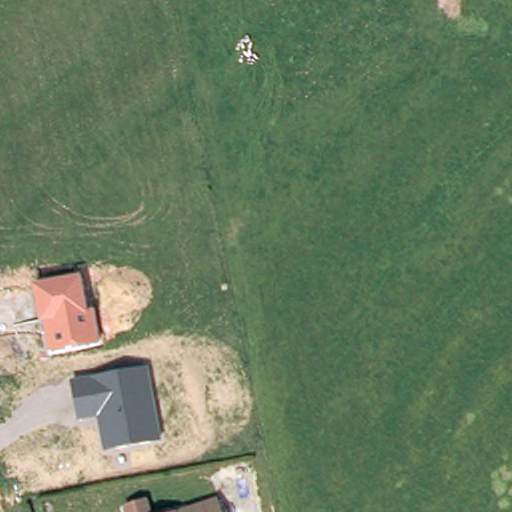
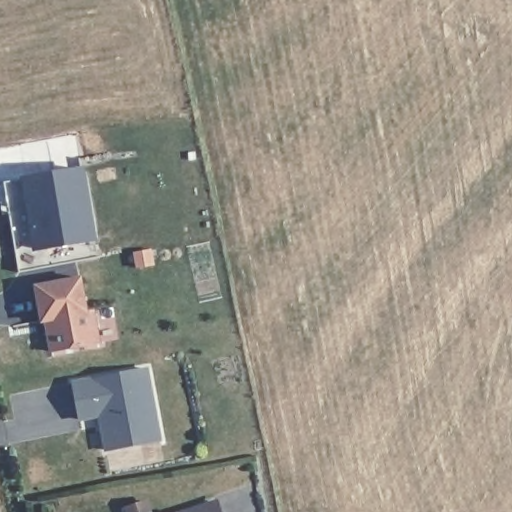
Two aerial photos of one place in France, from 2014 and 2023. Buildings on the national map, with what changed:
new [(96,240),(33,250),(20,178),(84,166),(96,240)]
unchanged [(88,309),(95,309),(101,342),(50,351),(44,323),(40,323),(35,285),(81,276),(88,309)]
unchanged [(161,441),(103,454),(97,418),(78,421),(70,381),(149,366),(161,441)]
unchanged [(146,501),(150,512),(129,512),(127,508),(146,501)]
unchanged [(221,512),(186,512),(218,501),(221,512)]

